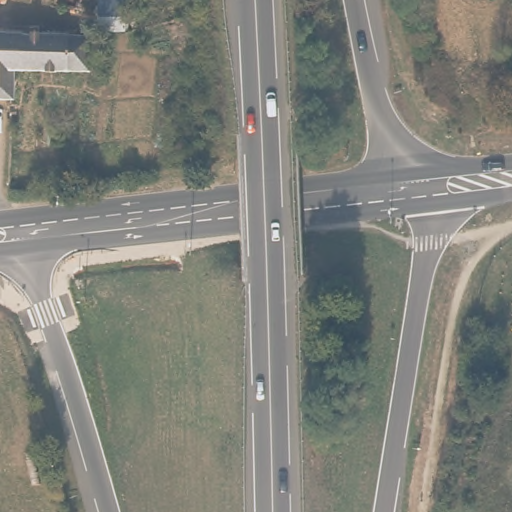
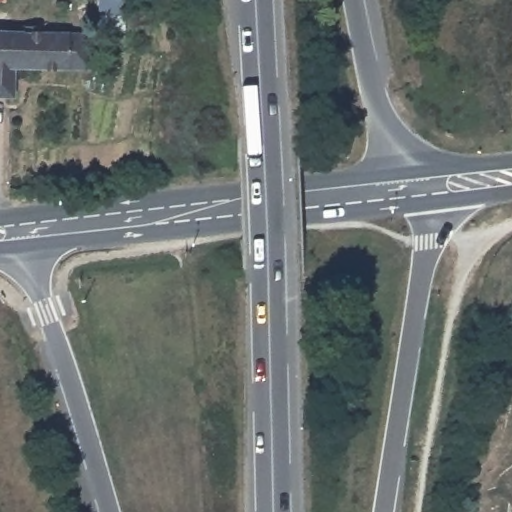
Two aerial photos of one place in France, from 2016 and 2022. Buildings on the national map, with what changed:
unchanged [(12,28),(41,29),(42,36),(92,37),(92,72),(16,72),(15,101),(0,100),(0,35),(12,35),(12,28)]

